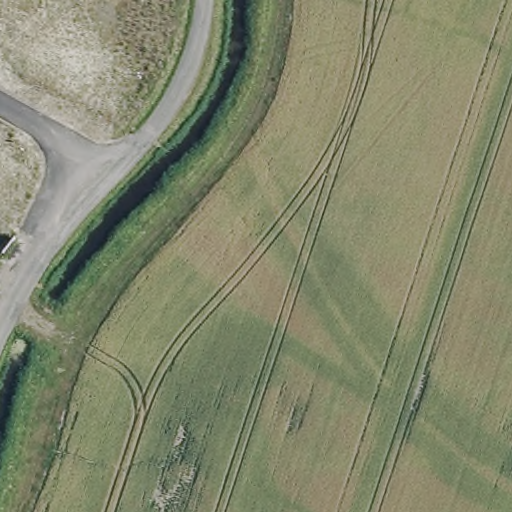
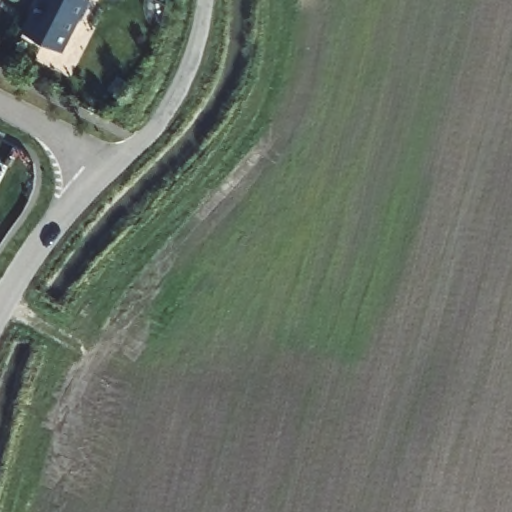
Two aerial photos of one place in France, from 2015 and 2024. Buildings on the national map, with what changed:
new [(96,0),(66,60),(28,40),(48,0),(96,0)]
new [(6,179),(0,190),(0,176),(6,179)]

